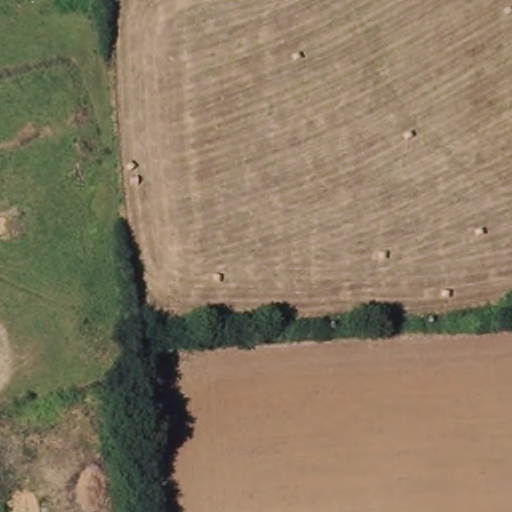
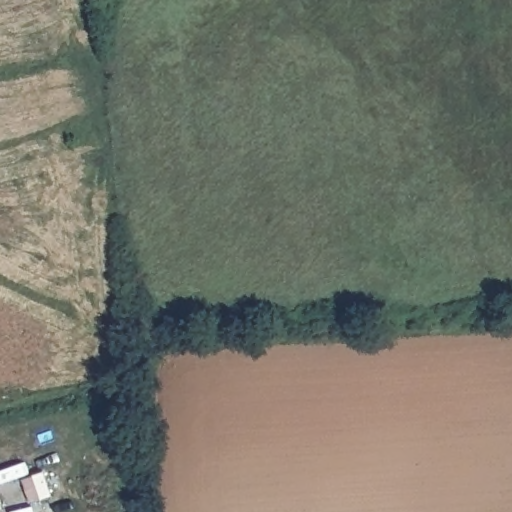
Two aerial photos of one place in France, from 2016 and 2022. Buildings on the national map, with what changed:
[]

